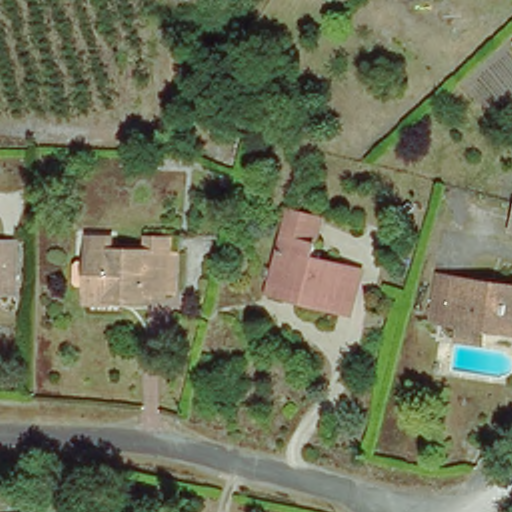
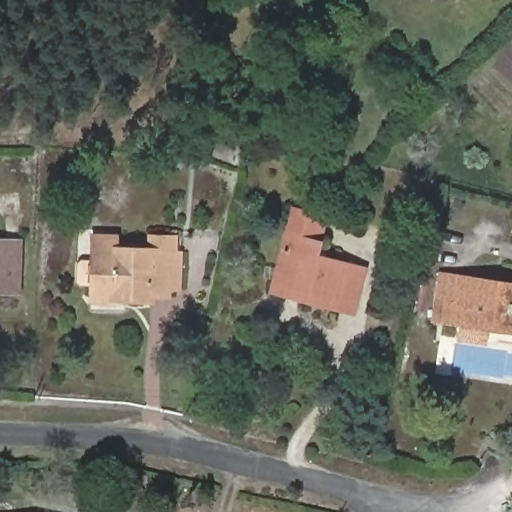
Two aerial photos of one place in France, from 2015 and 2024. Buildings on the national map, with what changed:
unchanged [(337,307),(293,292),(269,283),(272,273),(299,201),(313,206),(334,214),(324,239),(319,252),(353,264),(366,268),(350,312),(337,307)]
unchanged [(21,239),(19,289),(0,288),(0,237),(21,239)]
unchanged [(177,292),(84,291),(84,246),(154,249),(154,237),(178,237),(177,292)]
unchanged [(443,270),(512,285),(512,328),(433,311),(443,270)]

